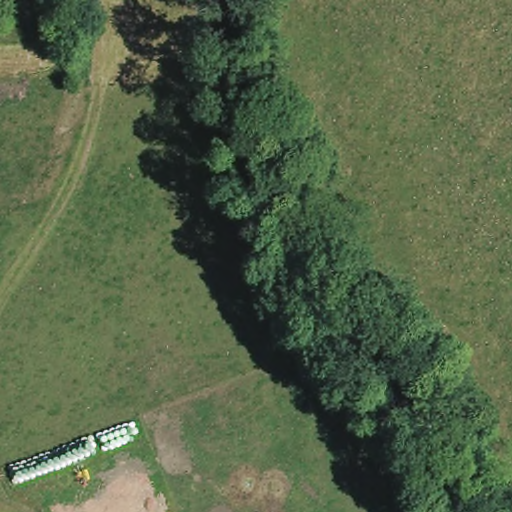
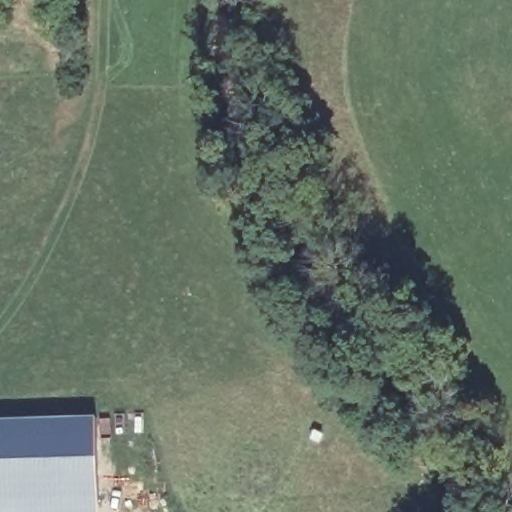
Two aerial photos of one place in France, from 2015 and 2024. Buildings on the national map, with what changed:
new [(110,417),(110,433),(97,434),(99,512),(0,512),(0,417),(38,416),(110,417)]

